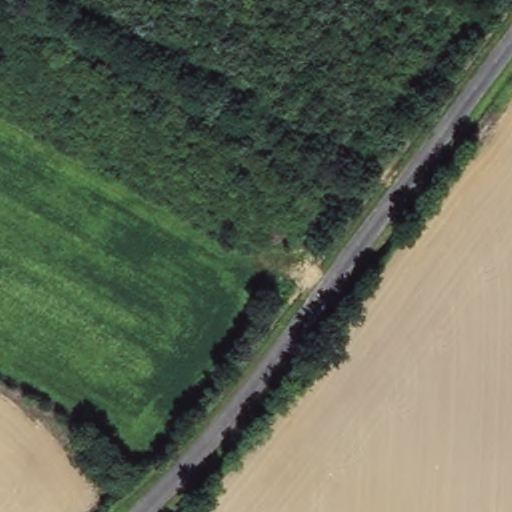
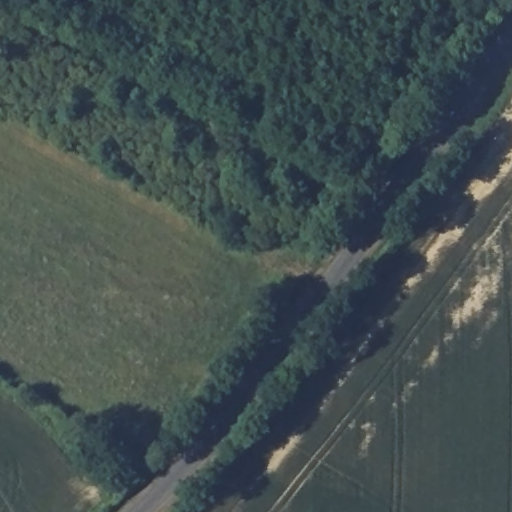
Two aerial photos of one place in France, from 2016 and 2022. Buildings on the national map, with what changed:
[]

